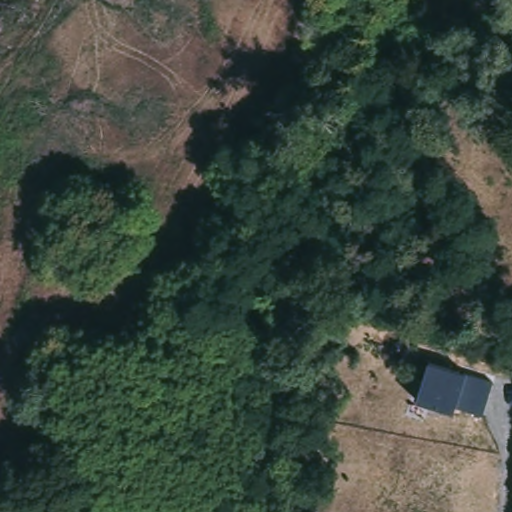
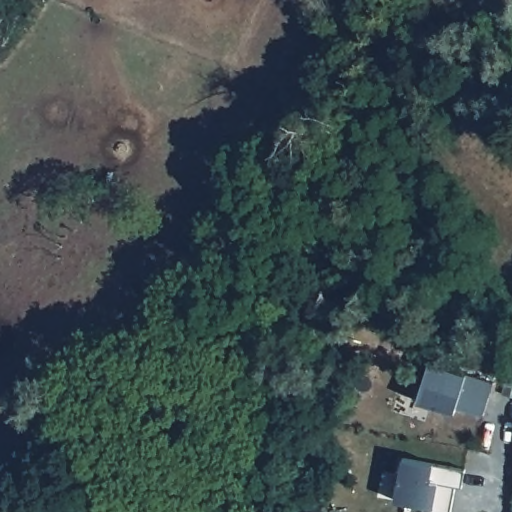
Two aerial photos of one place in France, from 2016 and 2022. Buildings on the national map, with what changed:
unchanged [(496,379),(482,415),(455,406),(453,412),(416,401),(430,358),(496,379)]
new [(400,458),(463,470),(460,488),(453,487),(449,512),(430,512),(430,508),(392,501),(400,458)]

